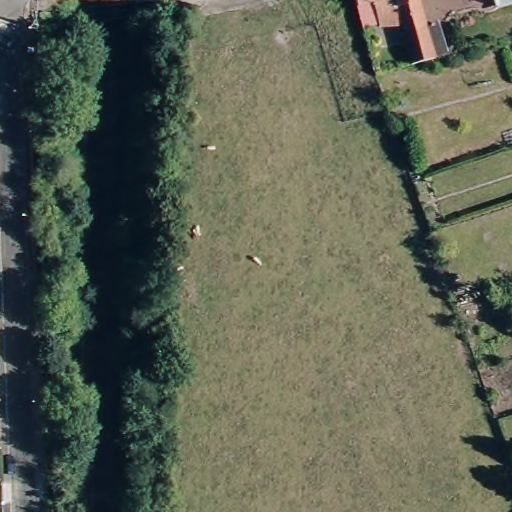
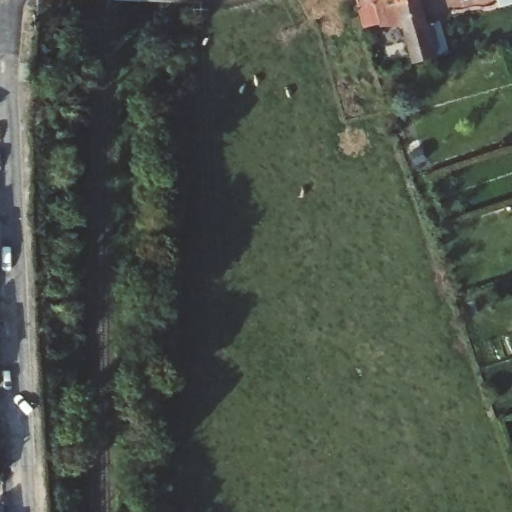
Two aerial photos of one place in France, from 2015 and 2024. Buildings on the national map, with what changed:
unchanged [(387,12),(359,19),(353,0),(383,0),(387,12)]
unchanged [(393,0),(416,0),(421,16),(437,11),(447,47),(432,51),(410,57),(402,30),(393,0)]
unchanged [(493,0),(506,0),(505,1),(494,4),(493,0)]

